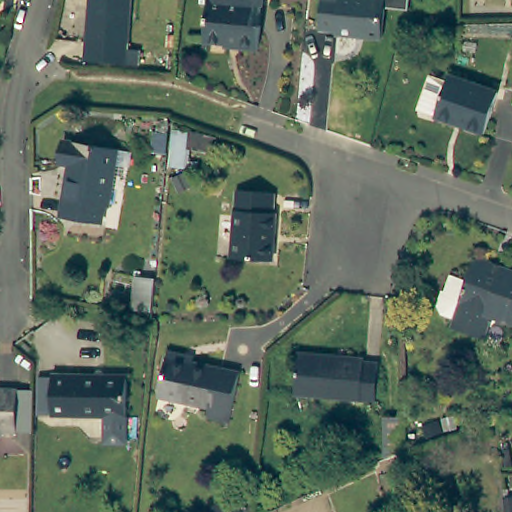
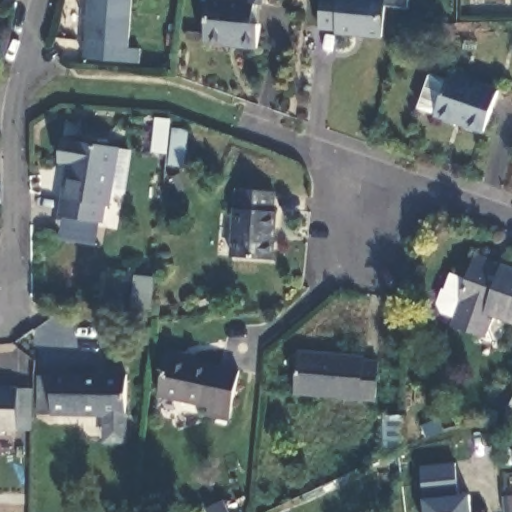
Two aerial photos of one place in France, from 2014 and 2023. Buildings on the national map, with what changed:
unchanged [(124,44),(135,45),(134,59),(79,55),(83,0),(127,0),(124,44)]
unchanged [(262,5),(255,4),(253,24),(260,25),(258,48),(239,46),(240,44),(206,41),(209,0),(262,0),(262,5)]
unchanged [(409,4),(385,2),(382,32),(337,28),(337,25),(320,24),(322,0),(409,0),(409,4)]
unchanged [(490,132),(441,115),(441,114),(425,108),(436,75),(452,81),(455,75),(503,91),(490,132)]
unchanged [(109,208),(105,207),(102,224),(62,217),(70,165),(60,163),(64,139),(119,148),(109,208)]
unchanged [(275,192),(273,212),(276,212),(272,260),(232,257),(237,190),(275,192)]
unchanged [(495,263),(505,266),(507,261),(512,263),(512,315),(499,311),(492,333),(456,321),(459,312),(448,309),(443,300),(448,285),(451,286),(457,269),(472,275),(480,252),(497,258),(495,263)]
unchanged [(135,310),(135,309),(136,304),(152,306),(151,311),(135,310)]
unchanged [(359,351),(373,353),(371,390),(290,383),(293,342),(359,348),(359,351)]
unchanged [(238,361),(229,410),(207,406),(209,397),(159,386),(167,347),(238,361)]
unchanged [(105,442),(106,410),(52,410),(52,406),(37,405),(37,368),(52,369),(127,370),(126,411),(126,442),(105,442)]
unchanged [(16,384),(32,384),(31,426),(17,426),(0,426),(0,383),(16,384)]
unchanged [(405,416),(406,446),(398,449),(385,455),(385,416),(405,416)]
new [(455,463),(458,495),(471,494),(473,512),(427,512),(422,466),(455,463)]
unchanged [(512,512),(505,512),(503,497),(512,495),(512,512)]

